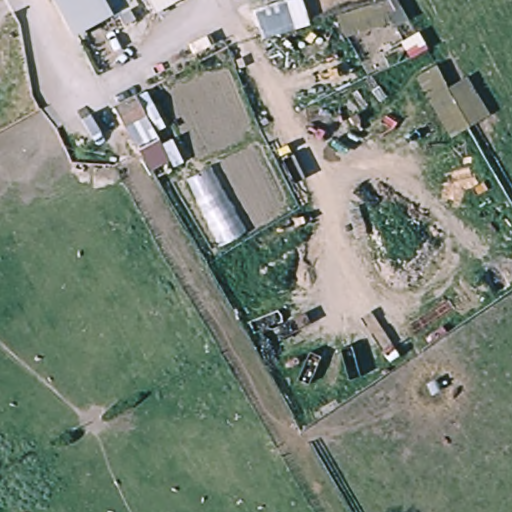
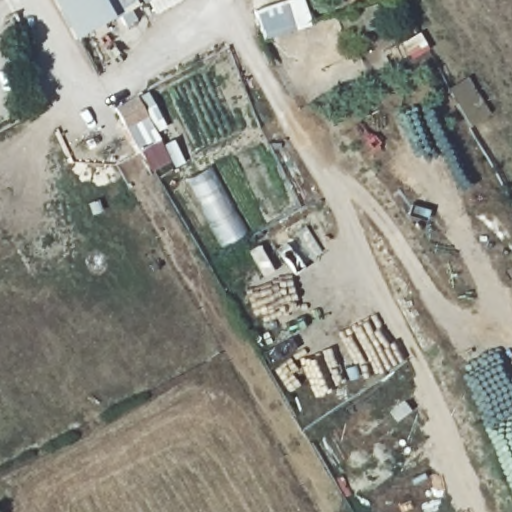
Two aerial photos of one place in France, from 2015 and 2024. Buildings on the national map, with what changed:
unchanged [(137,19),(124,26),(115,13),(74,34),(54,0),(136,0),(139,4),(130,8),(137,19)]
unchanged [(148,0),(178,0),(157,12),(148,0)]
unchanged [(296,0),(304,24),(259,38),(257,29),(254,30),(249,11),(284,0),(296,0)]
unchanged [(334,14),(379,0),(381,0),(388,22),(342,36),(334,14)]
unchanged [(381,0),(395,0),(399,5),(387,11),(381,0)]
unchanged [(467,76),(489,114),(469,127),(451,137),(416,76),(436,65),(446,83),(445,84),(448,88),(449,87),(467,76)]
unchanged [(162,151),(141,164),(126,137),(121,127),(109,106),(130,94),(162,151)]

